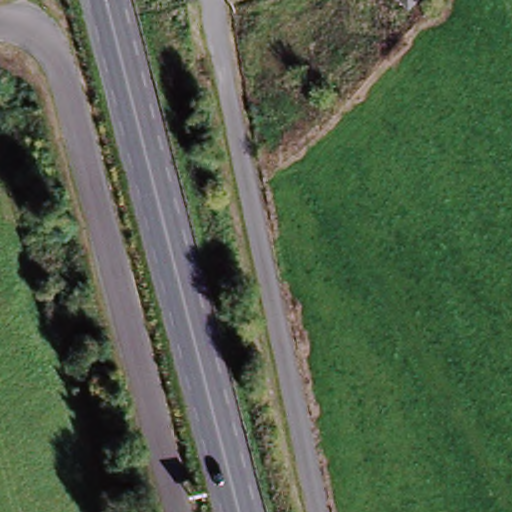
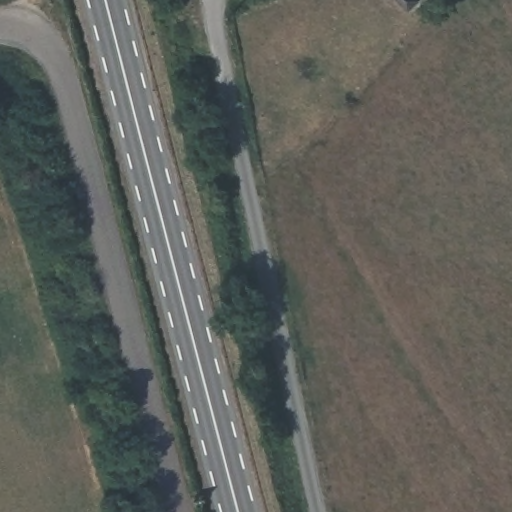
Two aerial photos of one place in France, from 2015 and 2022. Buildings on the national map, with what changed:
unchanged [(398,0),(410,0),(403,6),(398,0)]

